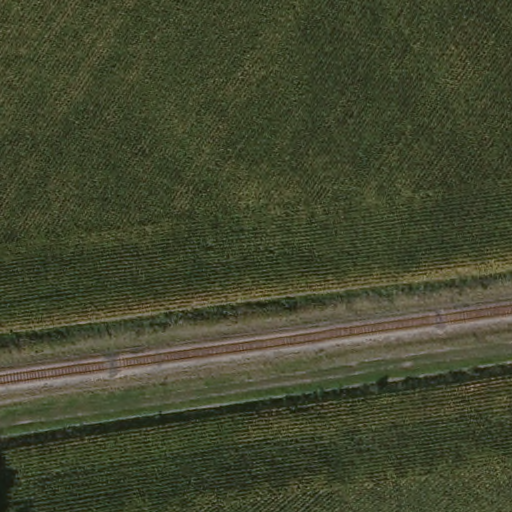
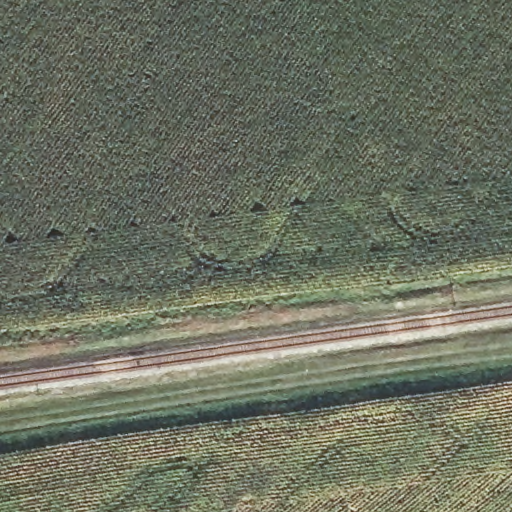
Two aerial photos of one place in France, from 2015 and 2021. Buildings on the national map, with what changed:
[]

